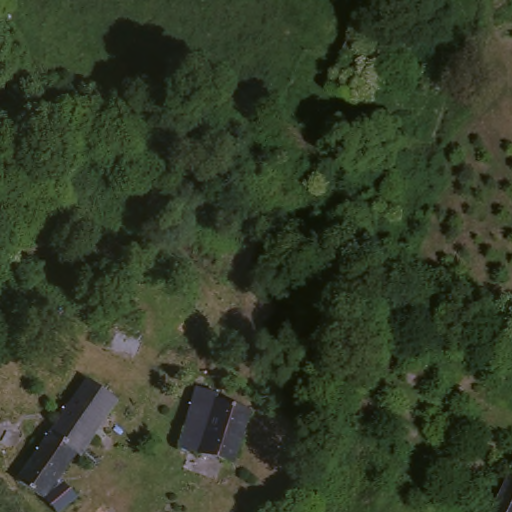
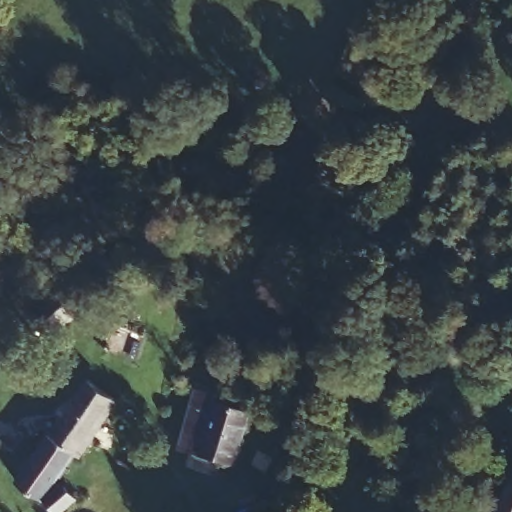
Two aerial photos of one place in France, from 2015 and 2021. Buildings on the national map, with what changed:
unchanged [(227,394),(223,405),(252,415),(234,462),(180,442),(198,395),(202,385),(227,394)]
unchanged [(121,407),(74,455),(69,451),(30,491),(12,467),(100,386),(121,407)]
unchanged [(512,471),(512,512),(491,512),(512,471)]

